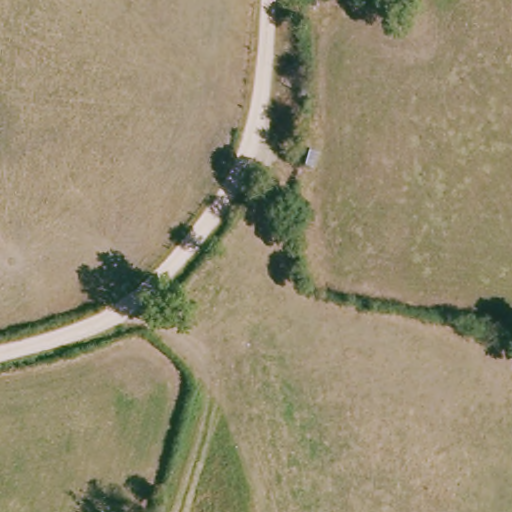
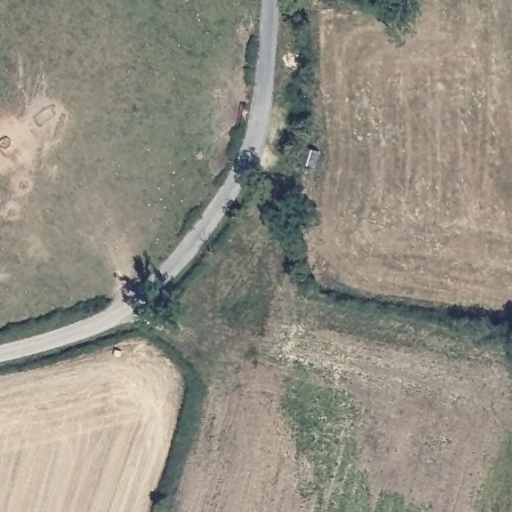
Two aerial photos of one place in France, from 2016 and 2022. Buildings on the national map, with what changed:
unchanged [(304,143),(318,145),(315,161),(301,160),(304,143)]

